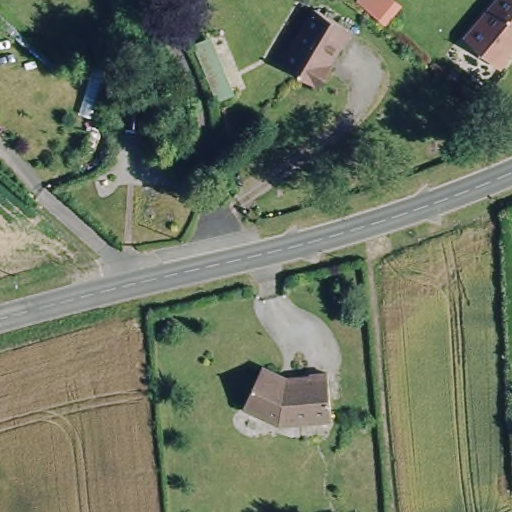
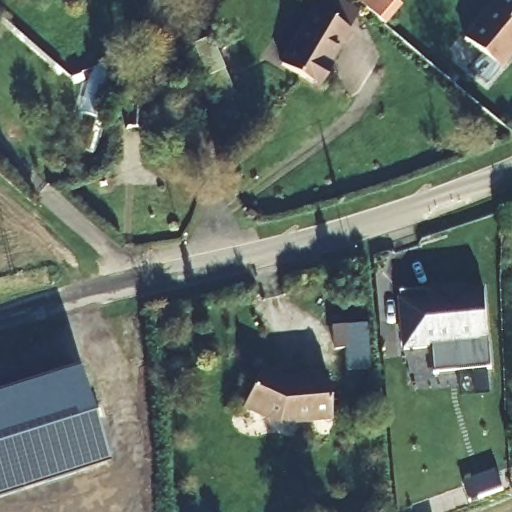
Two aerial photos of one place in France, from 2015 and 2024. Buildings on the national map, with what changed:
unchanged [(327,66),(333,70),(318,90),(280,61),(317,10),(324,0),(336,0),(363,20),(353,36),(343,51),(340,49),(327,66)]
unchanged [(512,0),(512,62),(503,73),(467,44),(504,0),(512,0)]
unchanged [(225,31),(245,90),(215,101),(196,40),(225,31)]
unchanged [(136,112),(137,134),(122,134),(122,113),(136,112)]
new [(427,290),(428,297),(437,295),(437,290),(469,289),(469,292),(485,290),(491,368),(435,373),(433,349),(404,351),(400,292),(427,290)]
new [(107,462),(0,496),(0,391),(78,367),(107,462)]
unchanged [(276,426),(245,411),(265,372),(288,382),(309,379),(309,376),(328,374),(329,391),(330,424),(293,425),(276,426)]

